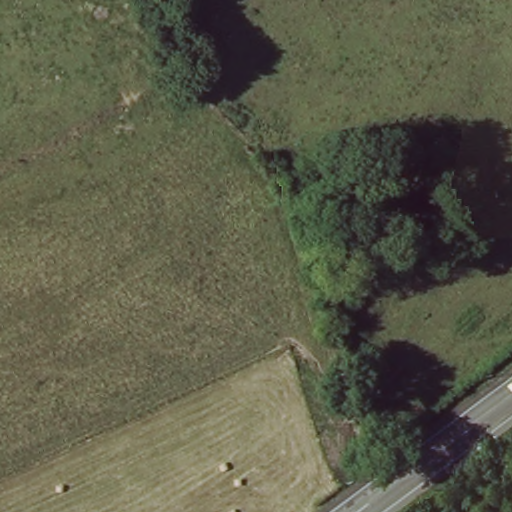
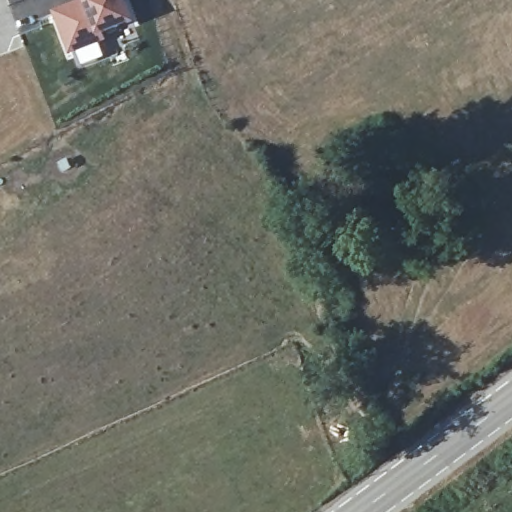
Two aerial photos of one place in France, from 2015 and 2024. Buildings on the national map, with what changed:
new [(128,0),(137,23),(105,35),(110,42),(72,57),(53,11),(84,0),(128,0)]

